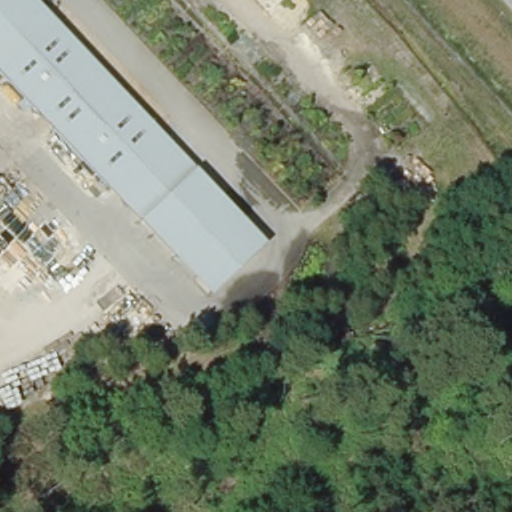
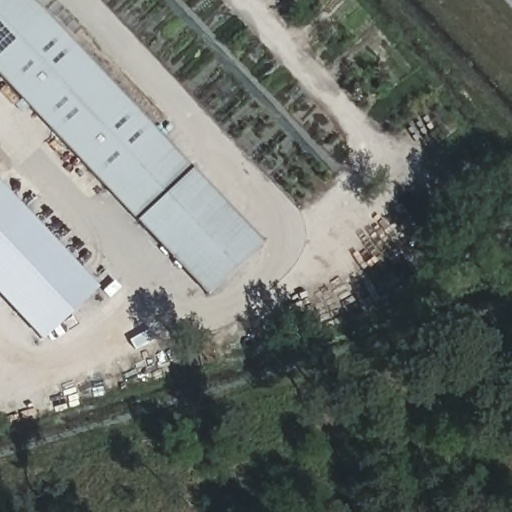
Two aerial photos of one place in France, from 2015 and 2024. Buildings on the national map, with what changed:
unchanged [(184,160),(195,171),(265,245),(212,295),(141,221),(132,214),(0,73),(0,0),(32,0),(184,160)]
new [(26,210),(0,235),(0,182),(26,210)]
new [(26,210),(98,287),(41,340),(0,296),(0,235),(26,210)]

